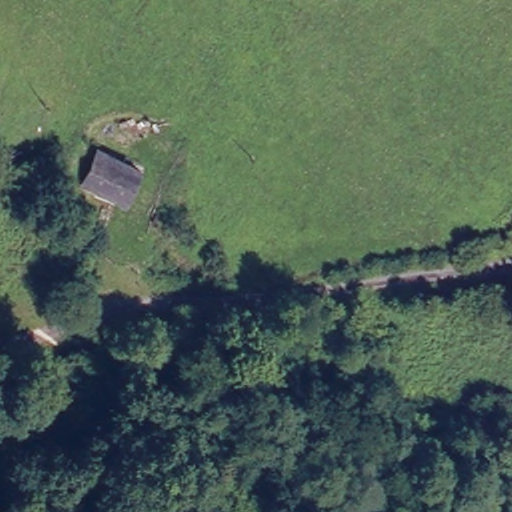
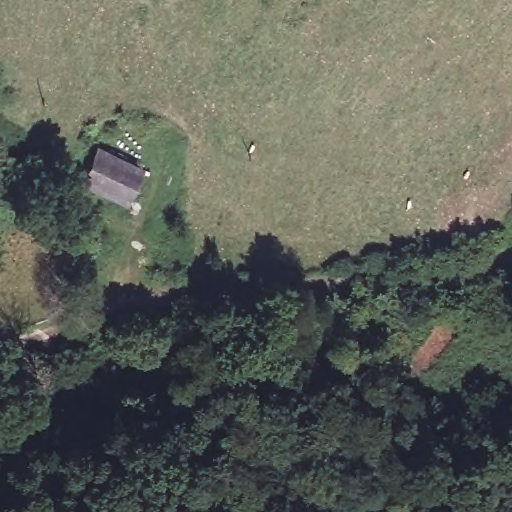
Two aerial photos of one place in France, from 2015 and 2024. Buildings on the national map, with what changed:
unchanged [(92,160),(136,174),(126,202),(107,195),(84,187),(92,160)]

